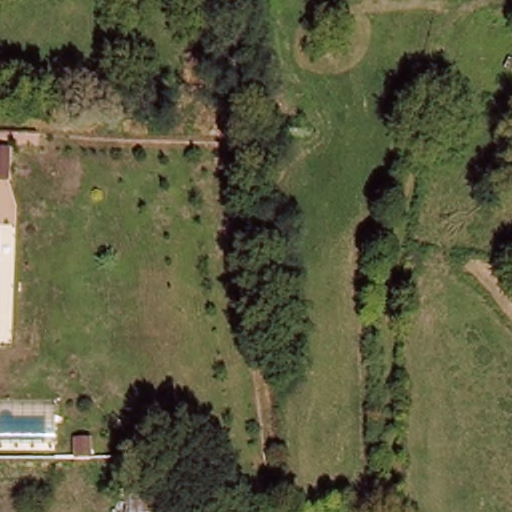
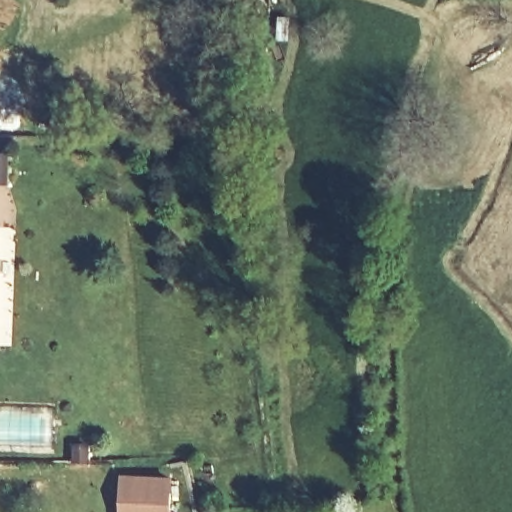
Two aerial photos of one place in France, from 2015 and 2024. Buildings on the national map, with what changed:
unchanged [(0,180),(0,150),(11,150),(10,180),(0,180)]
new [(121,512),(121,474),(174,475),(177,512),(121,512)]

